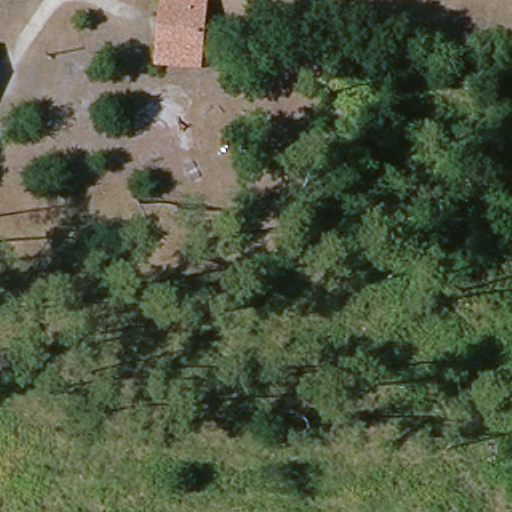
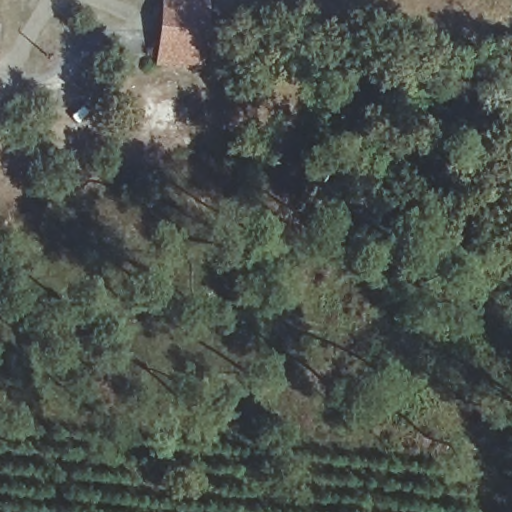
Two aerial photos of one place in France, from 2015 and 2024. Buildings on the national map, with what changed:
unchanged [(201,73),(154,67),(162,0),(209,0),(201,73)]

